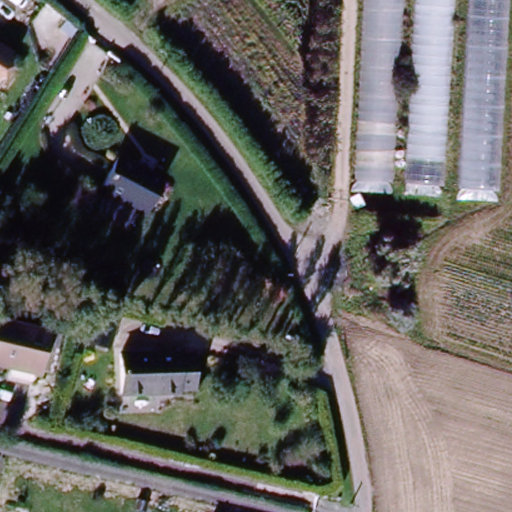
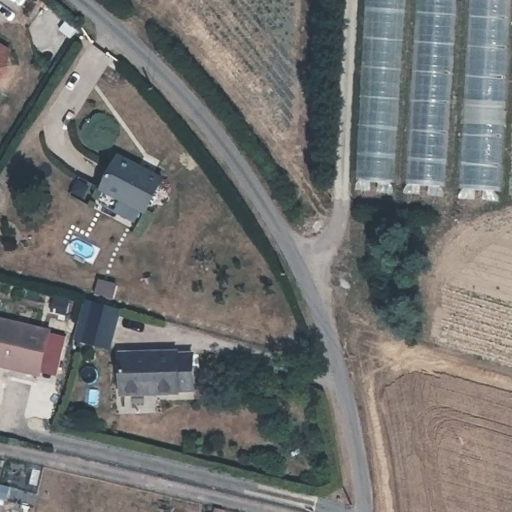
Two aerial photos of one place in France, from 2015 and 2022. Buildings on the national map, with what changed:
unchanged [(399,189),(357,186),(369,0),(411,0),(399,189)]
unchanged [(449,191),(408,189),(421,0),(461,0),(449,191)]
unchanged [(497,193),(457,191),(469,0),(510,0),(497,193)]
unchanged [(0,43),(14,51),(0,75),(0,43)]
unchanged [(162,183),(145,218),(101,195),(119,161),(162,183)]
unchanged [(119,312),(110,349),(76,340),(86,304),(119,312)]
unchanged [(0,325),(50,337),(39,380),(0,370),(0,325)]
unchanged [(177,352),(177,354),(192,354),(194,391),(178,391),(178,393),(121,395),(120,353),(177,352)]

